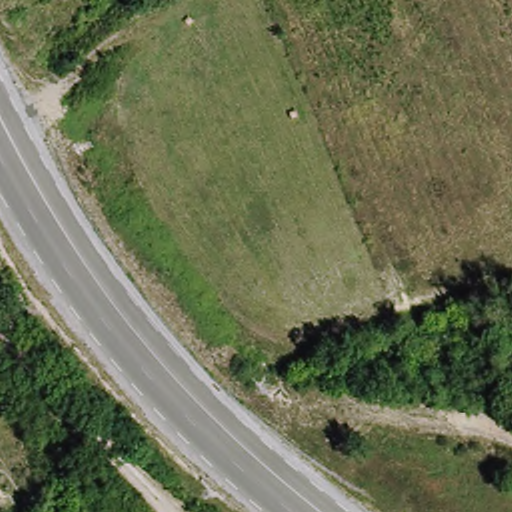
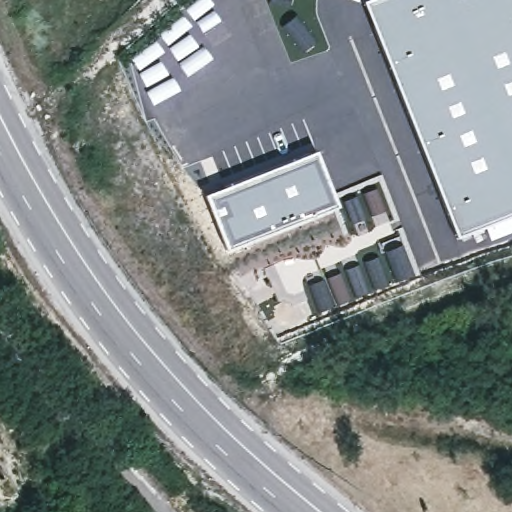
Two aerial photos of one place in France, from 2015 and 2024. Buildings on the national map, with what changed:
new [(512,0),(512,214),(457,235),(363,0),(364,0),(512,0)]
new [(314,151),(335,204),(227,248),(205,194),(314,151)]

